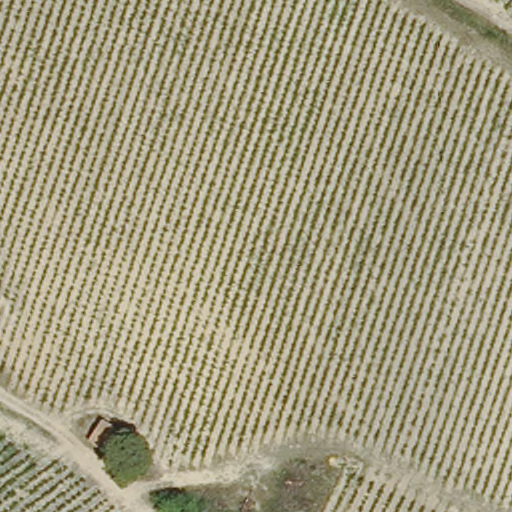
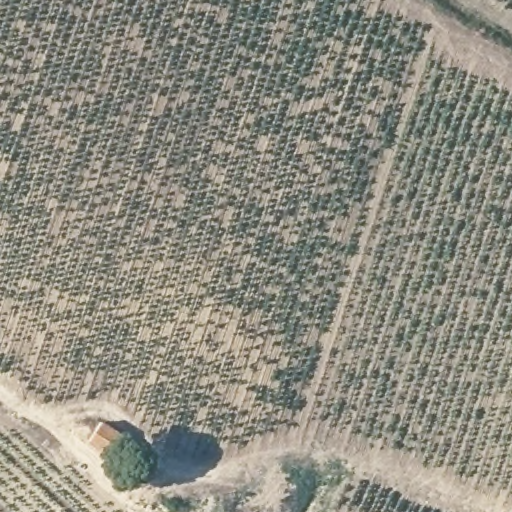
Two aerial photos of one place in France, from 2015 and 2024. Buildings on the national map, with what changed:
unchanged [(102,433),(107,432),(109,428),(122,440),(109,460),(106,464),(86,451),(98,431),(102,433)]

